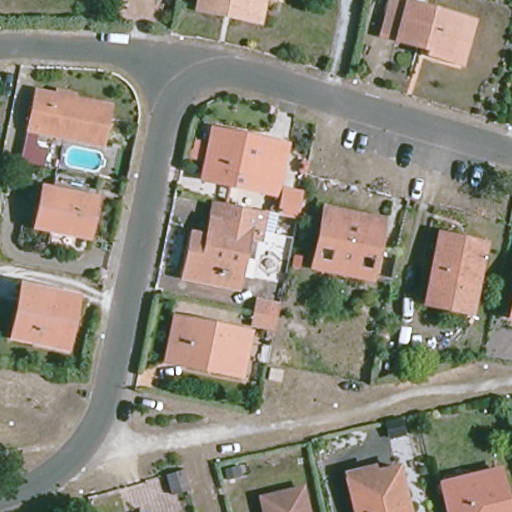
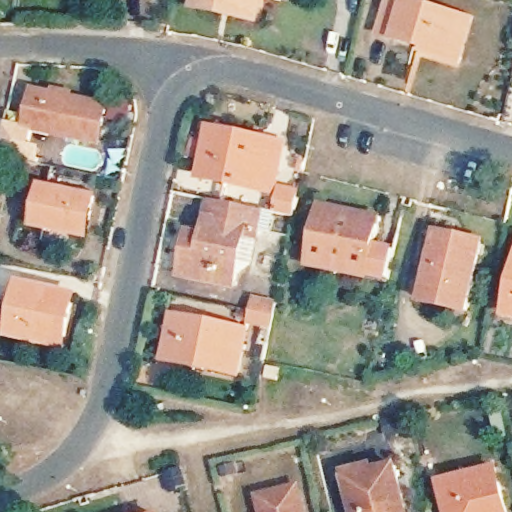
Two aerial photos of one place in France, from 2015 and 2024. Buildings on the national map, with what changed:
unchanged [(202,6),(203,0),(267,0),(264,14),(263,20),(221,11),(202,6)]
unchanged [(450,61),(423,54),(425,49),(379,35),(388,0),(398,0),(462,18),(473,21),(461,65),(450,61)]
unchanged [(46,145),(43,160),(24,156),(30,126),(38,88),(111,104),(103,142),(37,128),(34,143),(46,145)]
unchanged [(203,173),(214,124),(235,128),(271,136),(287,139),(275,194),(223,183),(202,178),(203,173)]
unchanged [(40,224),(49,185),(102,197),(94,236),(40,224)]
unchanged [(304,193),(298,217),(278,213),(284,189),(304,193)]
unchanged [(265,206),(260,227),(259,233),(247,231),(237,282),(182,271),(188,245),(191,227),(206,230),(214,195),(265,206)]
unchanged [(324,276),(325,272),(309,268),(319,219),(322,205),(379,218),(376,231),(372,251),(393,255),(386,285),(352,277),(351,282),(324,276)]
unchanged [(450,304),(427,299),(443,229),(487,239),(473,301),(471,309),(450,304)]
unchanged [(33,337),(13,332),(23,284),(78,295),(70,334),(67,344),(33,337)]
unchanged [(251,327),(254,314),(256,301),(280,306),(277,319),(275,332),(251,327)]
unchanged [(165,364),(174,320),(250,336),(241,380),(212,374),(183,368),(165,364)]
unchanged [(270,371),(282,373),(279,387),(267,384),(270,371)]
unchanged [(343,480),(347,479),(392,468),(403,512),(350,512),(343,480)]
unchanged [(442,483),(498,470),(508,512),(448,512),(442,483)]
unchanged [(266,510),(262,493),(305,482),(313,512),(266,512),(266,510)]

